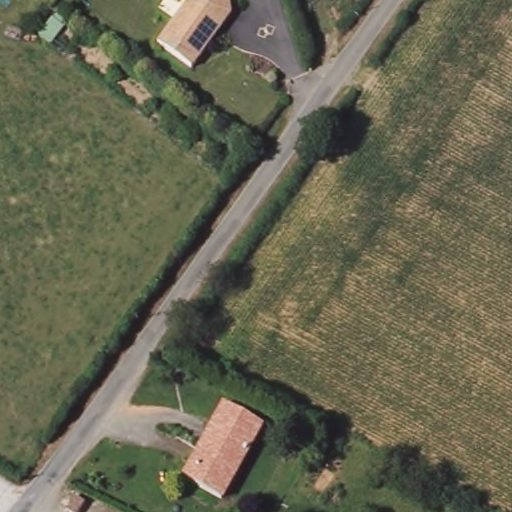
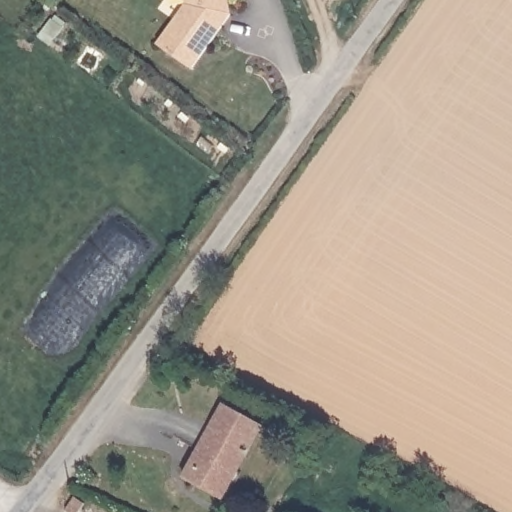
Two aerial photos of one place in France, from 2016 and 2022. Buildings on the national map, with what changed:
unchanged [(193,68),(159,43),(188,3),(187,0),(230,0),(233,14),(231,16),(224,25),(193,68)]
unchanged [(187,479),(226,410),(262,430),(223,499),(187,479)]

